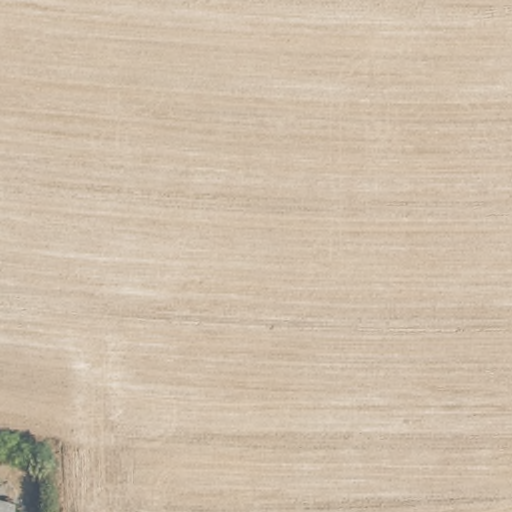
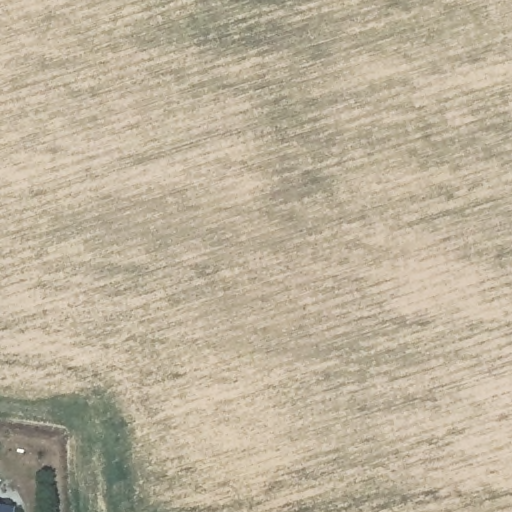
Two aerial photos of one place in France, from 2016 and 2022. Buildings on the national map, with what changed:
unchanged [(0,507),(15,509),(14,512),(0,512),(0,507)]

